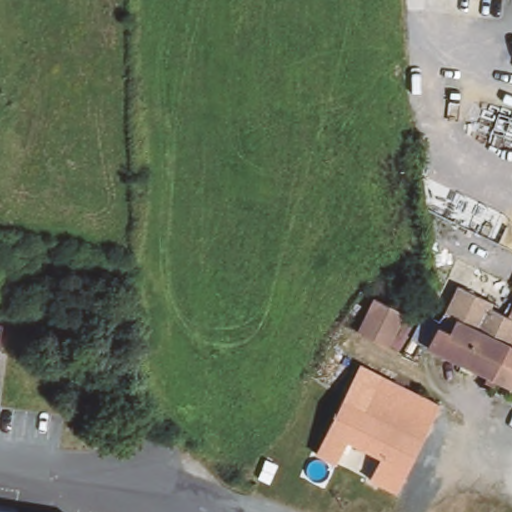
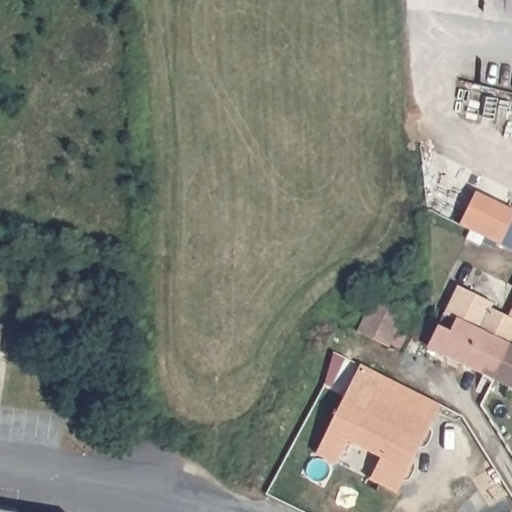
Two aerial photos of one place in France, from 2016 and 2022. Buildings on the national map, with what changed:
new [(471,189),(512,209),(496,242),(455,223),(471,189)]
unchanged [(492,378),(440,351),(431,346),(422,342),(412,337),(420,324),(426,312),(437,319),(440,319),(457,283),(494,302),(491,307),(496,309),(510,316),(512,312),(512,339),(492,378)]
unchanged [(406,316),(388,350),(357,334),(375,299),(406,316)]
unchanged [(0,348),(0,325),(2,326),(0,348)]
unchanged [(492,378),(512,339),(512,388),(492,378)]
unchanged [(328,387),(347,397),(362,369),(366,363),(385,374),(396,380),(401,370),(417,379),(412,388),(422,394),(420,397),(441,408),(417,457),(338,414),(330,430),(311,419),(328,387)]
unchanged [(330,430),(338,414),(417,457),(398,495),(319,451),(330,430)]
unchanged [(6,512),(0,512),(0,506),(7,507),(6,512)]
unchanged [(23,510),(23,512),(6,512),(7,507),(23,510)]
unchanged [(23,510),(37,512),(23,512),(23,510)]

